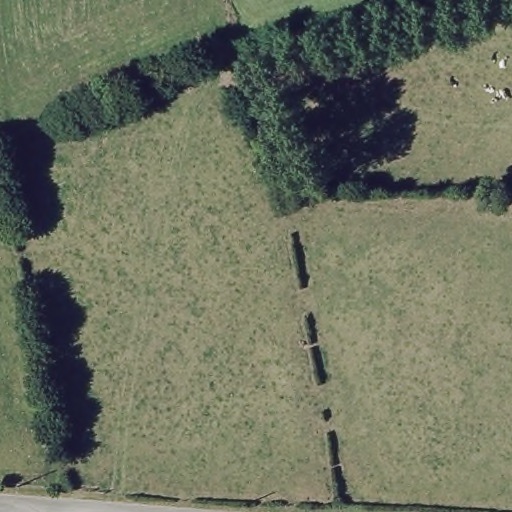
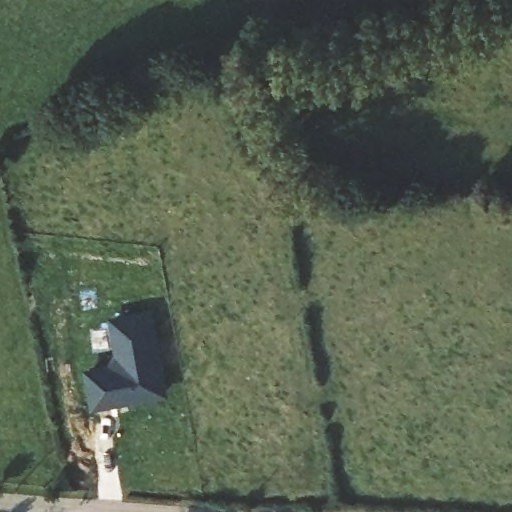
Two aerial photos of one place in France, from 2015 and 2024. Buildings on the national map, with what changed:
new [(115,355),(110,317),(153,308),(168,395),(91,411),(85,370),(108,365),(115,355)]

